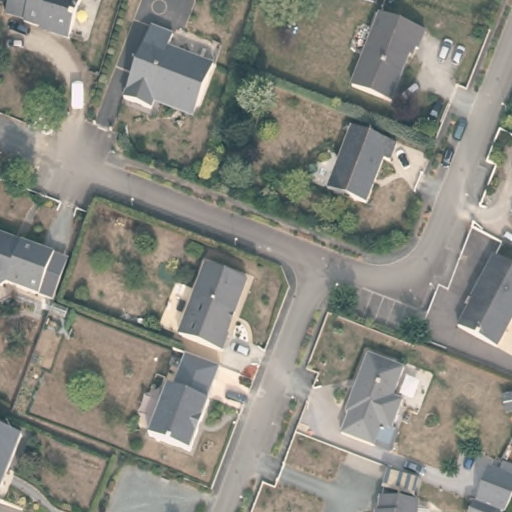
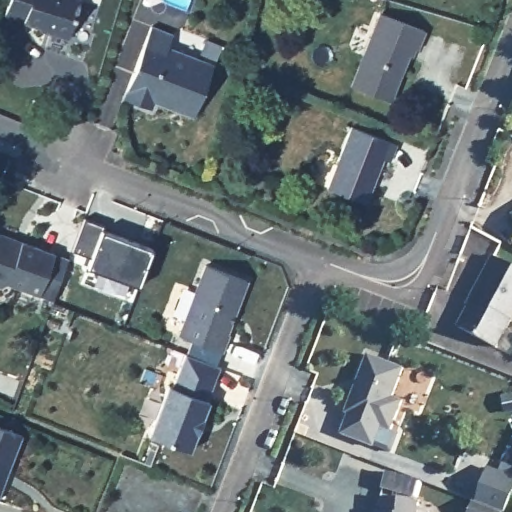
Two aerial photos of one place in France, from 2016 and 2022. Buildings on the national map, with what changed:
unchanged [(10,0),(81,0),(69,38),(51,32),(51,30),(25,21),(25,19),(5,13),(10,0)]
unchanged [(381,13),(425,32),(419,49),(413,47),(391,102),(352,85),(381,13)]
unchanged [(154,101),(151,108),(123,97),(152,26),(173,35),(168,48),(214,65),(197,107),(193,117),(154,101)]
unchanged [(352,126),(397,144),(390,161),(383,159),(366,203),(327,188),(352,126)]
new [(84,217),(104,224),(102,229),(153,248),(139,285),(87,266),(91,257),(72,249),(84,217)]
unchanged [(15,240),(20,242),(21,240),(55,253),(40,293),(7,281),(0,285),(0,233),(16,238),(15,240)]
unchanged [(474,299),(471,297),(493,255),(512,265),(512,319),(496,347),(458,326),(474,299)]
unchanged [(206,264),(247,279),(235,312),(232,313),(230,317),(231,321),(222,350),(179,334),(206,264)]
unchanged [(389,451),(373,445),(340,432),(348,412),(346,411),(368,353),(404,368),(393,395),(403,400),(391,429),(397,431),(389,451)]
unchanged [(191,450),(148,433),(168,383),(172,385),(179,367),(215,381),(208,399),(209,401),(202,419),(198,429),(191,450)]
unchanged [(0,491),(0,425),(22,434),(0,491)]
unchanged [(512,477),(512,499),(505,512),(476,500),(488,468),(512,477)]
unchanged [(413,499),(412,512),(374,512),(375,495),(413,499)]

